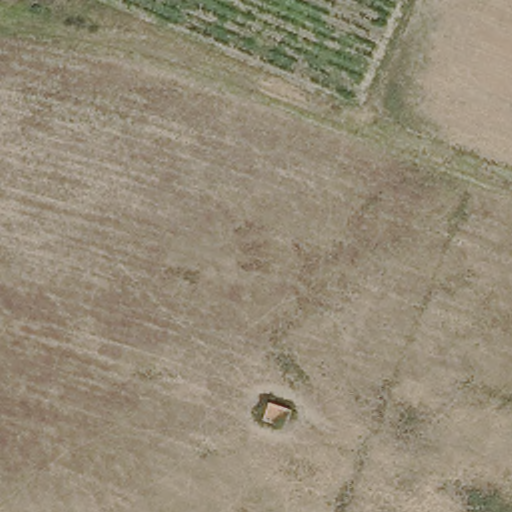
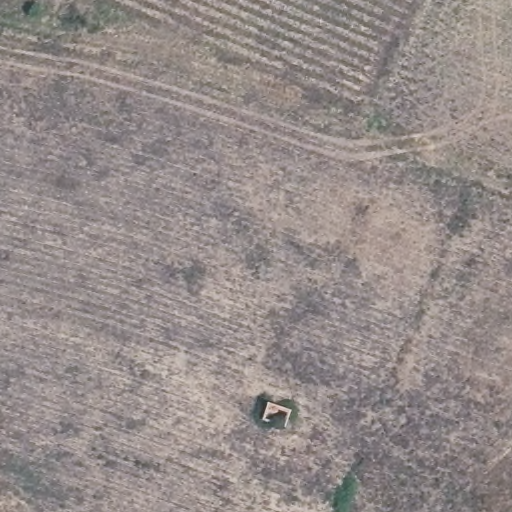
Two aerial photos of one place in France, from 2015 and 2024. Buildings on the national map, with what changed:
unchanged [(280,422),(257,414),(263,396),(287,404),(280,422)]

